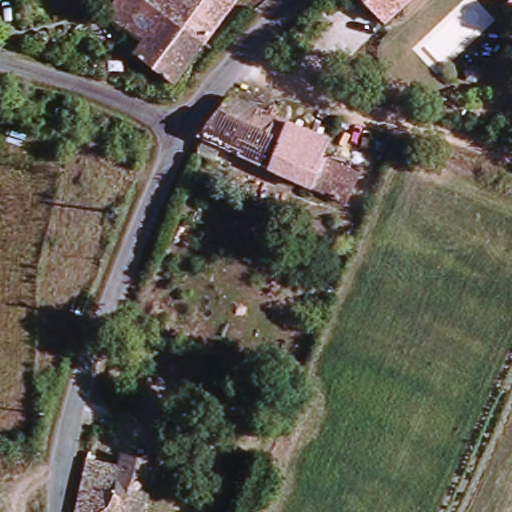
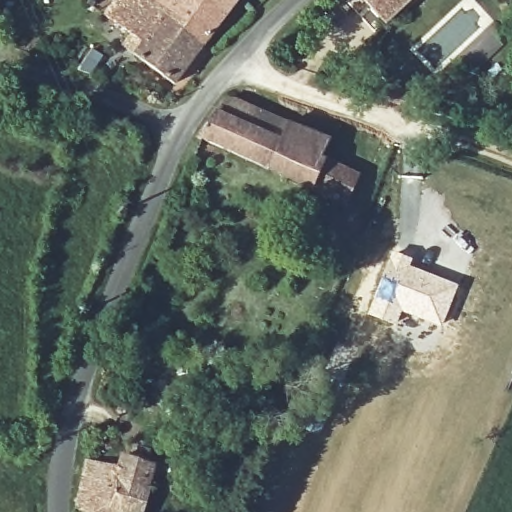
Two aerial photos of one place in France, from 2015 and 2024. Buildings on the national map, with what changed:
unchanged [(149,0),(203,39),(175,77),(133,47),(141,35),(106,11),(114,0),(149,0)]
unchanged [(203,39),(149,0),(195,0),(218,18),(203,39)]
unchanged [(233,0),(218,18),(195,0),(233,0)]
unchanged [(355,0),(411,0),(380,28),(355,0)]
unchanged [(512,36),(499,9),(512,3),(512,36)]
unchanged [(95,45),(105,53),(92,71),(79,66),(95,45)]
unchanged [(355,179),(341,207),(195,136),(224,100),(326,144),(318,161),(355,179)]
new [(392,250),(413,259),(410,265),(458,284),(441,327),(401,312),(395,326),(366,314),(392,250)]
unchanged [(123,473),(127,459),(150,467),(145,489),(138,512),(71,512),(82,460),(123,473)]

